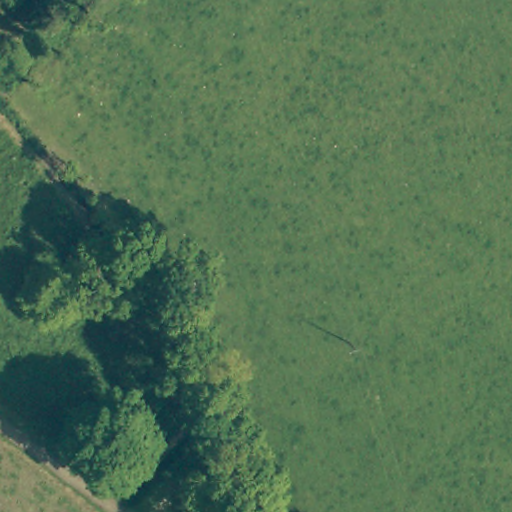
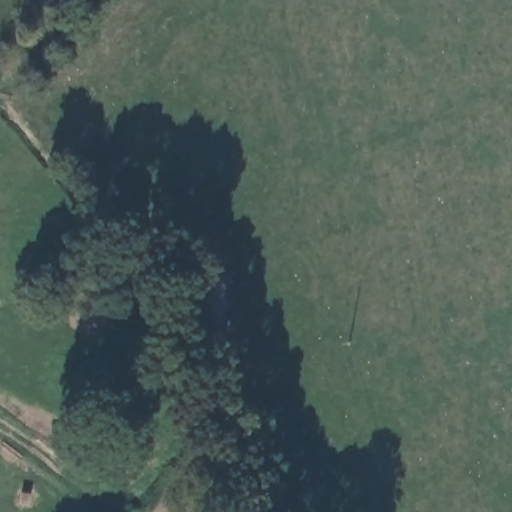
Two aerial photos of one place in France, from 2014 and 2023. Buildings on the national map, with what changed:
[]

